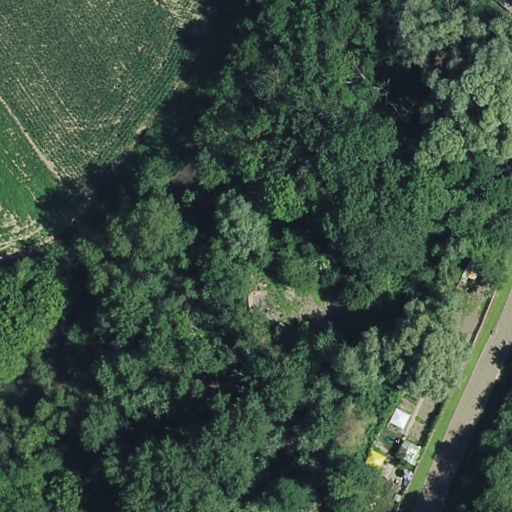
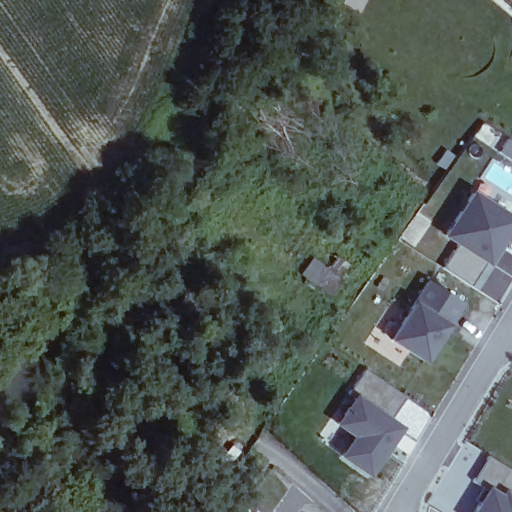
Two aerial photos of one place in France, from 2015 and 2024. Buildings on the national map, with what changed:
new [(512,212),(512,235),(492,269),(486,263),(474,287),(447,269),(461,248),(446,237),(473,188),(512,212)]
new [(468,306),(431,366),(391,341),(428,282),(468,306)]
new [(406,400),(363,466),(321,436),(364,371),(406,400)]
new [(476,512),(487,492),(474,485),(489,457),(512,473),(512,512),(476,512)]

